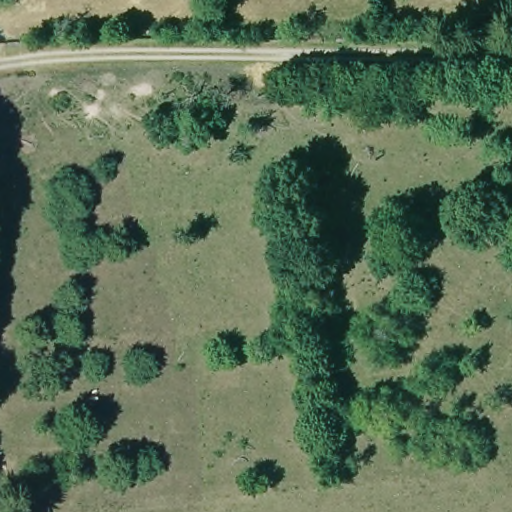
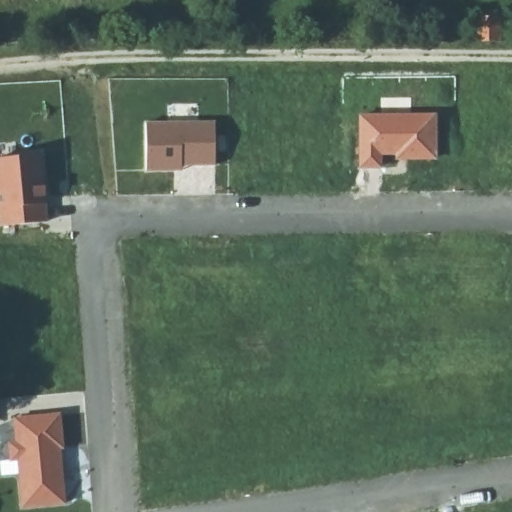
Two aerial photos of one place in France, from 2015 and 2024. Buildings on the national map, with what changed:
new [(477,40),(477,14),(498,15),(497,40),(477,40)]
new [(437,115),(438,161),(381,161),(382,169),(358,168),(358,114),(437,115)]
new [(215,122),(213,167),(181,169),(181,173),(145,173),(145,122),(215,122)]
new [(47,222),(0,227),(0,161),(43,157),(47,222)]
new [(6,421),(58,415),(61,447),(57,447),(60,477),(63,485),(63,500),(15,508),(14,473),(0,475),(0,445),(10,444),(6,421)]

